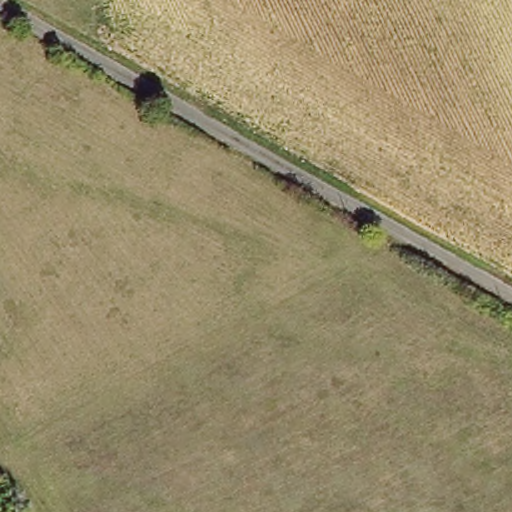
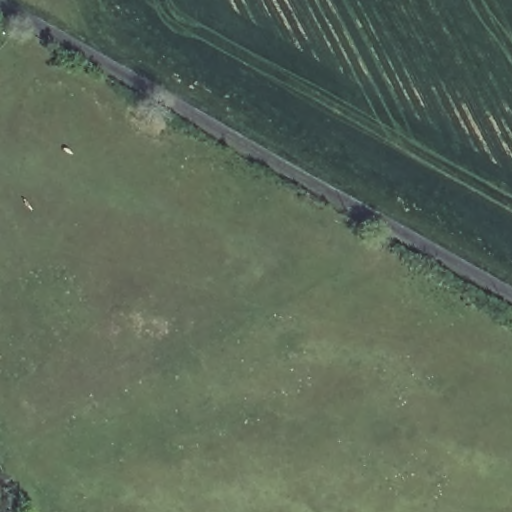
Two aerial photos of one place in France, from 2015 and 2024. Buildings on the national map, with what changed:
[]

